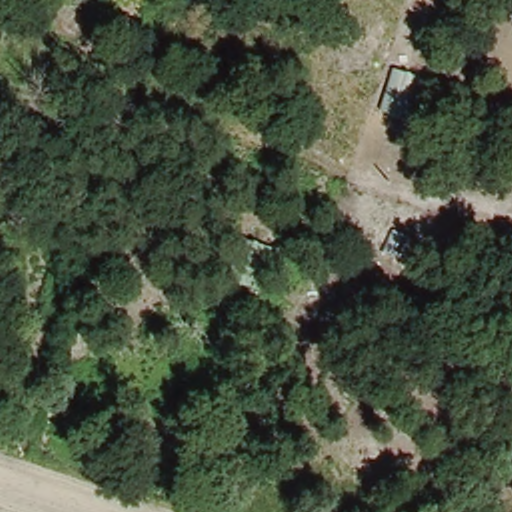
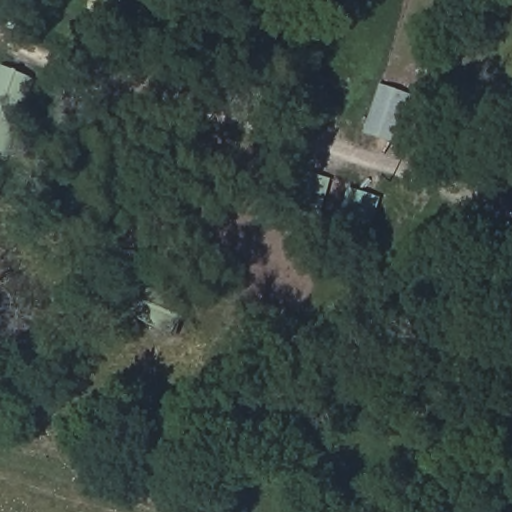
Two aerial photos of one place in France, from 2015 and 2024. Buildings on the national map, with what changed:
new [(32,78),(5,158),(0,156),(0,70),(1,68),(32,78)]

